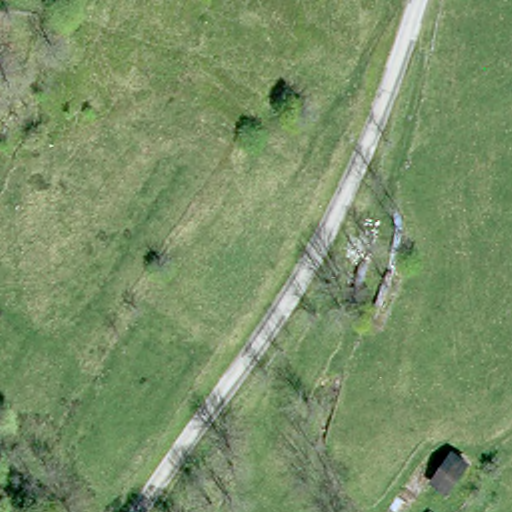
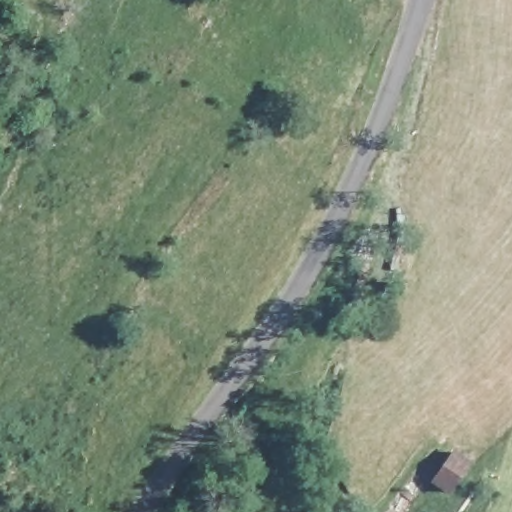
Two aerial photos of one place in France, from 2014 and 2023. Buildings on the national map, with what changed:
unchanged [(473,461),(451,489),(435,477),(455,449),(473,461)]

